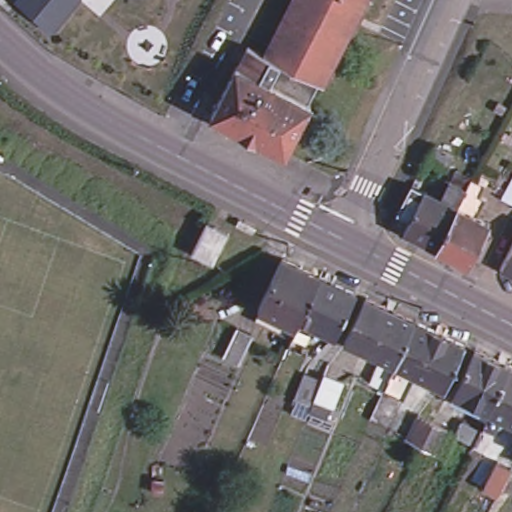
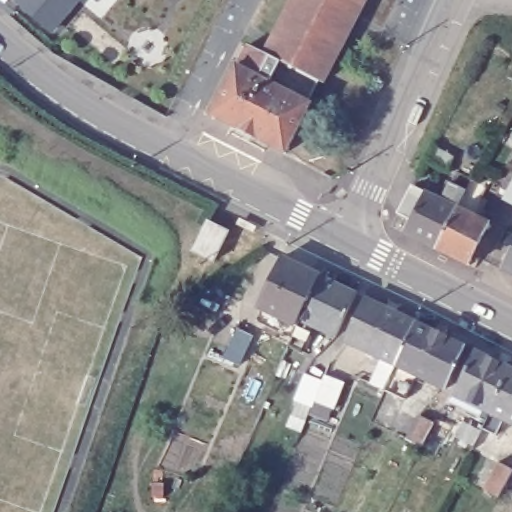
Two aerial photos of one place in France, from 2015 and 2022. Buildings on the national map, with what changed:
unchanged [(82,0),(69,18),(55,36),(53,35),(16,4),(19,0),(82,0)]
unchanged [(287,0),(358,0),(318,80),(315,79),(282,63),(261,52),(265,45),(287,0)]
unchanged [(247,37),(265,45),(261,52),(282,63),(271,84),(232,64),(247,37)]
unchanged [(224,130),(227,125),(207,114),(232,64),(271,84),(277,87),(304,100),(307,102),(280,153),(251,138),(248,144),(224,130)]
unchanged [(454,156),(447,168),(428,158),(435,145),(454,156)]
unchanged [(470,268),(439,253),(405,236),(412,223),(401,217),(415,190),(426,196),(440,203),(449,186),(453,188),(459,179),(470,185),(487,194),(482,203),(487,206),(478,223),(490,230),(470,268)]
unchanged [(502,199),(512,179),(512,204),(502,199)]
unchanged [(229,231),(215,262),(194,251),(209,222),(229,231)]
unchanged [(500,264),(512,242),(512,270),(500,264)]
unchanged [(314,328),(305,346),(288,338),(301,313),(266,296),(287,255),(322,271),(357,288),(337,329),(311,317),(307,324),(314,328)]
unchanged [(384,382),(396,357),(347,335),(367,292),(417,315),(467,339),(447,381),(418,368),(406,392),(384,382)]
unchanged [(260,329),(252,349),(237,344),(245,323),(260,329)]
unchanged [(476,344),(512,361),(490,404),(456,388),(476,344)]
unchanged [(512,361),(512,414),(490,404),(512,361)]
unchanged [(436,452),(422,445),(405,436),(418,414),(435,422),(448,428),(436,452)]
unchanged [(482,491),(497,463),(511,470),(497,498),(482,491)]

